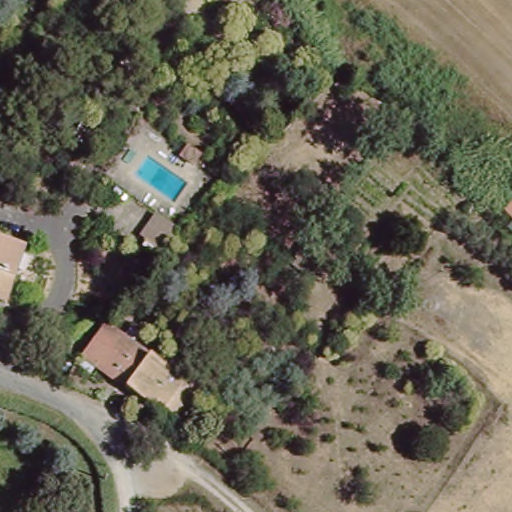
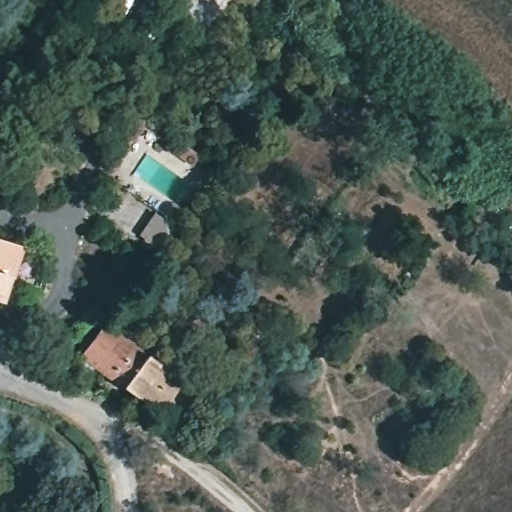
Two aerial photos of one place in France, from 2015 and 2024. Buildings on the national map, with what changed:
unchanged [(141,54),(126,73),(110,61),(125,42),(141,54)]
unchanged [(178,129),(192,140),(184,150),(171,139),(178,129)]
unchanged [(294,244),(309,219),(339,238),(321,263),(294,244)]
unchanged [(8,304),(0,302),(0,240),(26,249),(8,304)]
unchanged [(161,407),(154,403),(152,407),(79,361),(101,328),(181,379),(161,407)]

